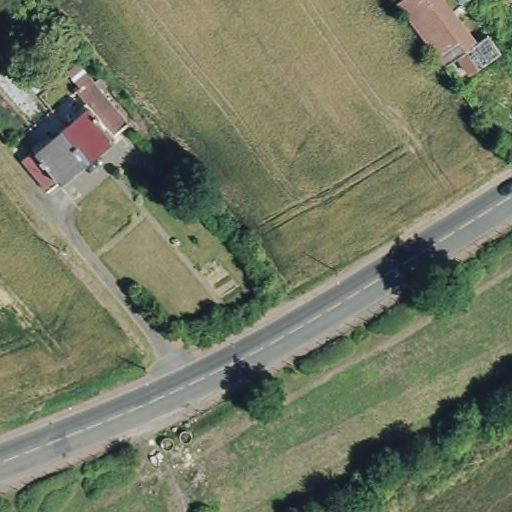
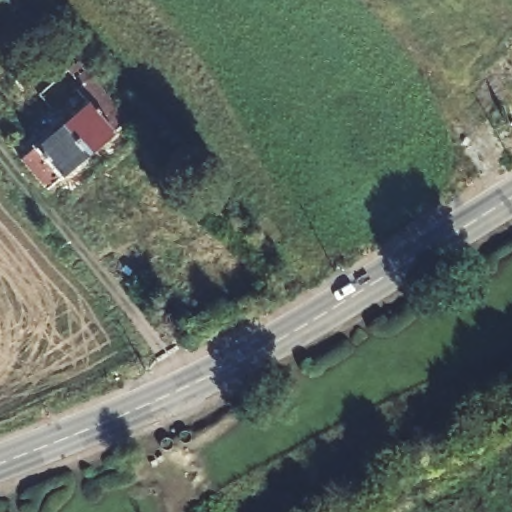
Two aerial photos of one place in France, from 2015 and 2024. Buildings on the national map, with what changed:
demolished [(496,52),(466,72),(455,55),(442,62),(400,0),(444,0),(473,42),(484,34),(496,52)]
unchanged [(63,125),(65,123),(72,117),(69,111),(86,97),(77,84),(91,72),(130,117),(115,129),(115,131),(104,142),(87,154),(63,125)]
unchanged [(62,176),(60,175),(47,187),(21,155),(35,145),(32,142),(49,129),(52,134),(65,123),(63,125),(87,154),(62,176)]

